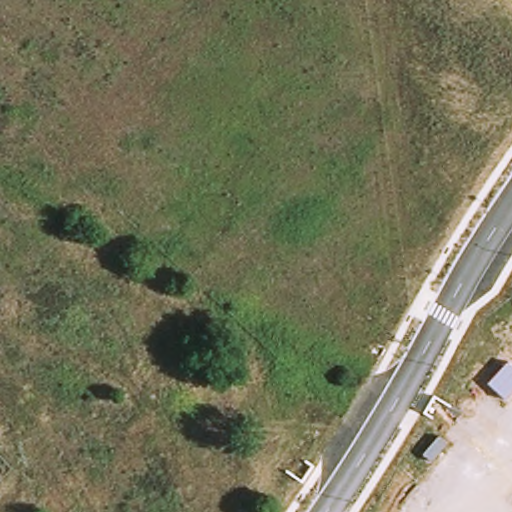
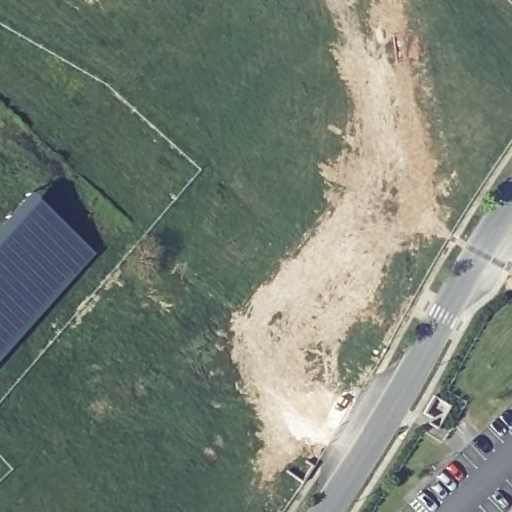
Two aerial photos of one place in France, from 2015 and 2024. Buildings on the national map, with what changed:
new [(67,225),(96,251),(76,275),(0,359),(0,222),(25,195),(67,225)]

